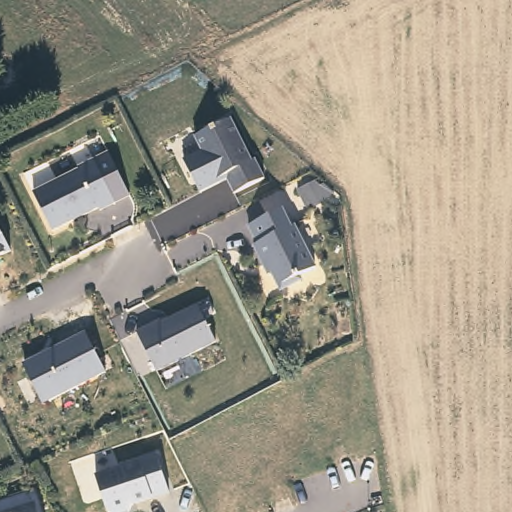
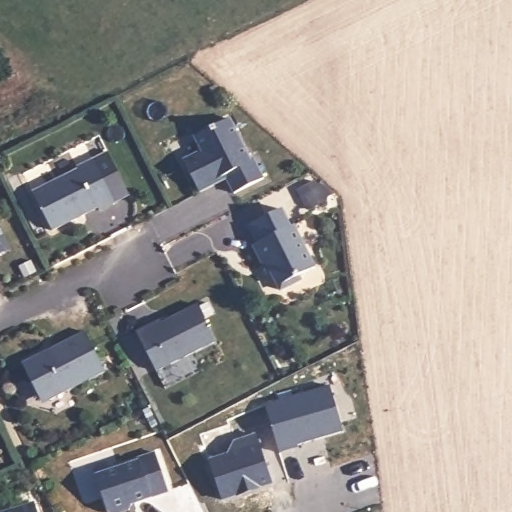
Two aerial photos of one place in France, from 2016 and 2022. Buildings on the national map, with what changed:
unchanged [(202,151),(195,137),(230,119),(252,161),(255,160),(264,179),(235,194),(228,179),(200,192),(184,160),(202,151)]
unchanged [(78,169),(77,167),(93,159),(115,202),(99,210),(98,207),(52,230),(32,192),(78,169)]
unchanged [(282,209),(291,227),(294,225),(316,268),(300,276),(302,280),(281,290),(267,263),(264,265),(254,245),(258,244),(249,226),(282,209)]
unchanged [(0,256),(0,229),(10,250),(0,256)]
unchanged [(157,320),(158,322),(194,305),(212,341),(153,371),(133,332),(157,320)]
unchanged [(105,373),(48,402),(40,399),(24,369),(50,356),(48,352),(85,333),(105,373)]
new [(279,450),(264,402),(327,383),(341,430),(279,450)]
new [(220,500),(207,457),(224,452),(230,439),(254,432),(271,484),(220,500)]
unchanged [(141,461),(159,456),(172,495),(135,507),(133,512),(110,512),(98,478),(142,464),(141,461)]
unchanged [(39,512),(10,512),(37,504),(39,512)]

